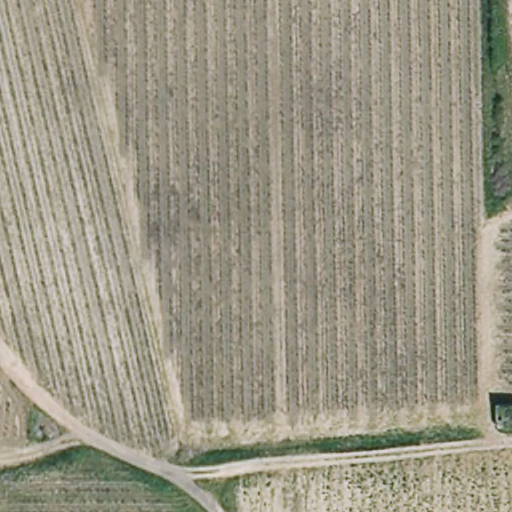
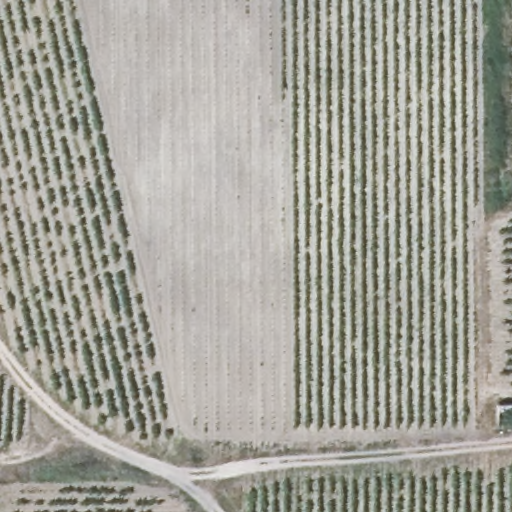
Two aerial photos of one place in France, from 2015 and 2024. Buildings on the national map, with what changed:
unchanged [(512,401),(512,422),(496,424),(494,402),(512,401)]

